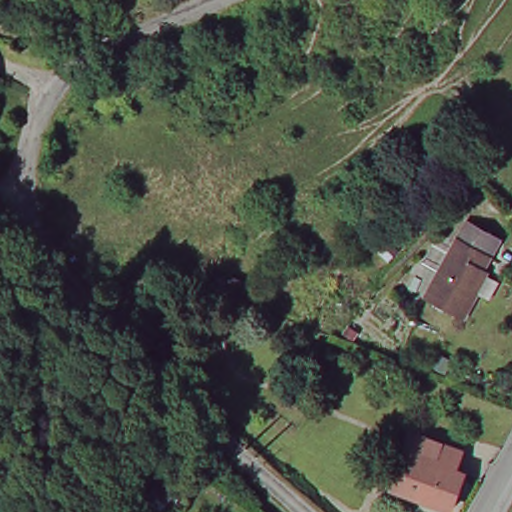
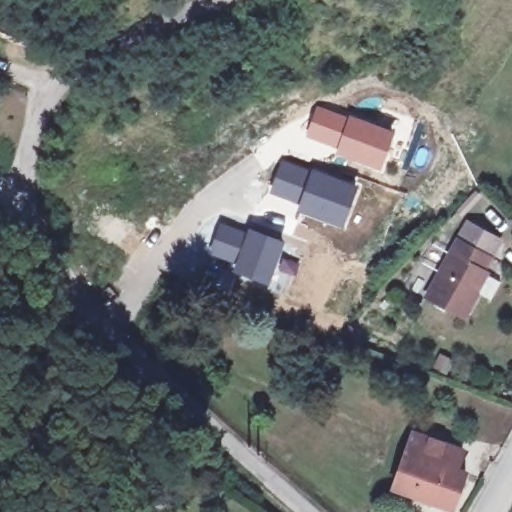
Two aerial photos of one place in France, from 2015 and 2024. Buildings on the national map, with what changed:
new [(317,104),(348,114),(337,148),(305,137),(317,104)]
new [(337,148),(348,114),(395,130),(382,170),(335,153),(337,148)]
new [(280,158),(311,166),(298,205),(268,193),(280,158)]
new [(298,205),(311,166),(360,183),(343,227),(297,209),(298,205)]
new [(220,220),(247,229),(234,264),(207,255),(220,220)]
unchanged [(465,224),(498,240),(474,289),(477,291),(465,315),(429,297),(465,224)]
new [(234,264),(247,229),(247,226),(287,241),(270,285),(232,271),(234,264)]
unchanged [(467,474),(456,508),(395,487),(408,449),(413,434),(464,452),(459,466),(457,470),(467,474)]

